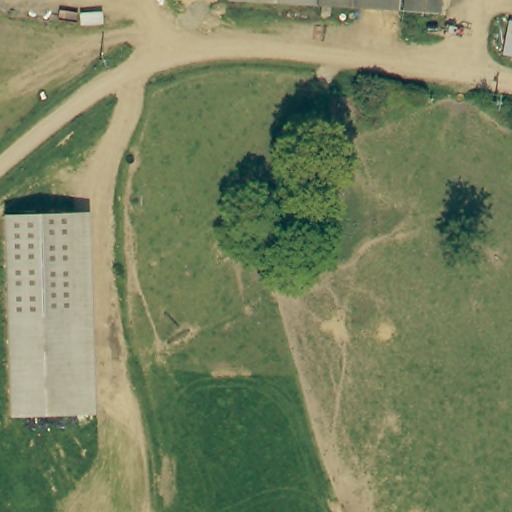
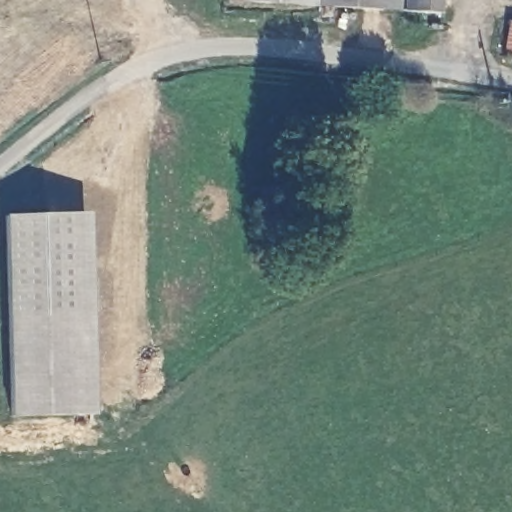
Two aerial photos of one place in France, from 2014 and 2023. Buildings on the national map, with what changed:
unchanged [(387,0),(387,5),(322,0),(387,0)]
unchanged [(387,0),(399,0),(399,6),(387,5),(387,0)]
unchanged [(407,5),(407,0),(445,0),(444,7),(407,5)]
unchanged [(508,52),(512,24),(512,53),(508,52)]
unchanged [(89,213),(94,415),(10,418),(3,214),(89,213)]

